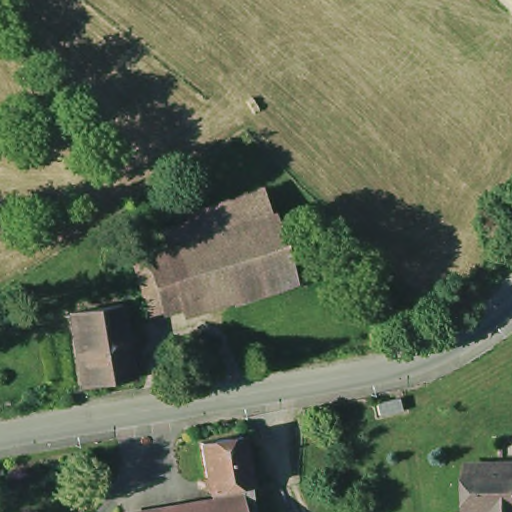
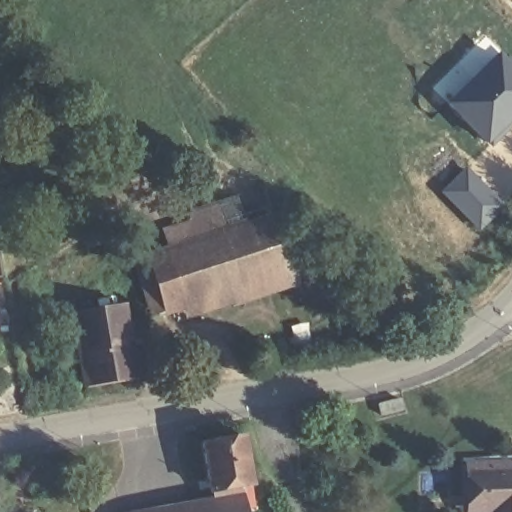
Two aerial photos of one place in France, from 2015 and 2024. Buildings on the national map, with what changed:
new [(512,67),(512,122),(489,146),(446,106),(501,55),(512,67)]
new [(507,207),(482,234),(439,192),(465,167),(507,207)]
unchanged [(189,317),(171,265),(175,263),(169,245),(195,235),(192,227),(205,223),(268,201),(277,228),(255,236),(273,288),(189,317)]
unchanged [(277,228),(280,227),(298,279),(273,288),(255,236),(277,228)]
unchanged [(161,326),(143,274),(171,265),(189,317),(161,326)]
new [(0,271),(1,277),(0,277),(0,271)]
unchanged [(137,380),(87,388),(72,315),(89,312),(87,306),(97,304),(99,311),(126,306),(137,380)]
unchanged [(402,409),(381,414),(379,404),(400,399),(402,409)]
unchanged [(211,493),(202,445),(242,438),(245,458),(256,456),(257,467),(247,469),(250,487),(211,493)]
unchanged [(512,468),(512,512),(469,512),(469,470),(512,468)]
unchanged [(246,512),(237,512),(246,511),(246,512)]

